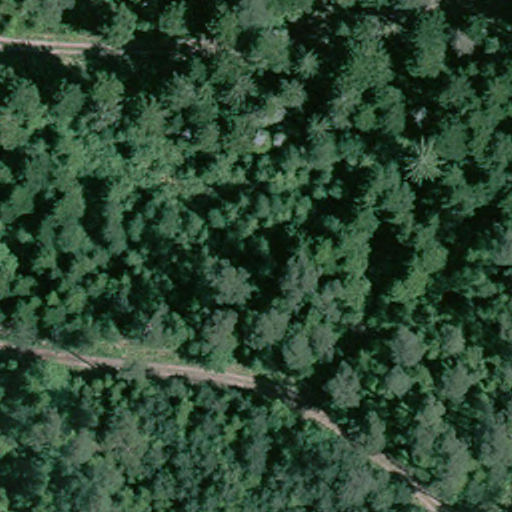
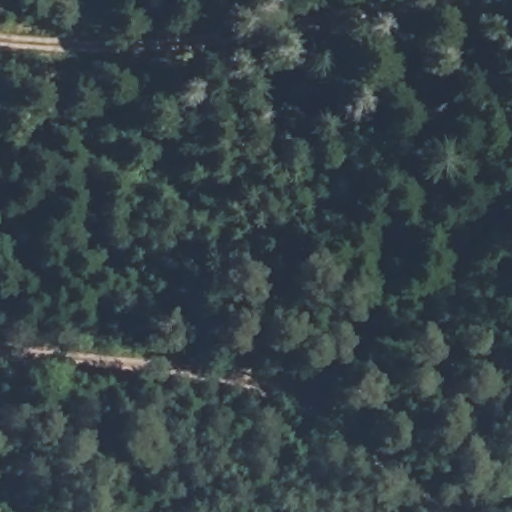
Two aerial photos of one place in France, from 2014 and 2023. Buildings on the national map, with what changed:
[]

